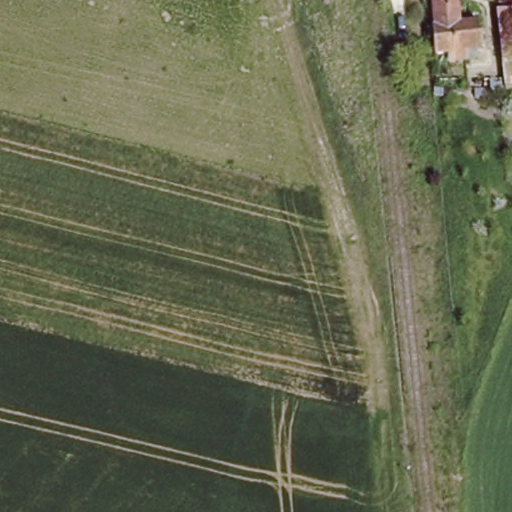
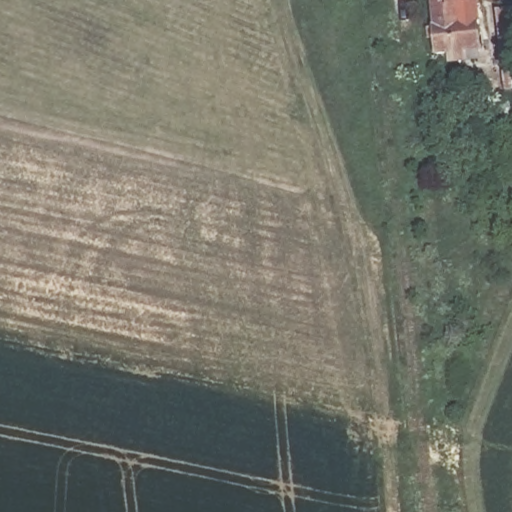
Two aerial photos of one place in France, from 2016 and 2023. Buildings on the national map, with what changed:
unchanged [(468,29),(471,54),(459,56),(460,66),(445,68),(443,58),(431,60),(427,35),(431,34),(427,3),(450,0),(454,31),(468,29)]
unchanged [(512,6),(512,107),(509,107),(492,7),(512,6)]

